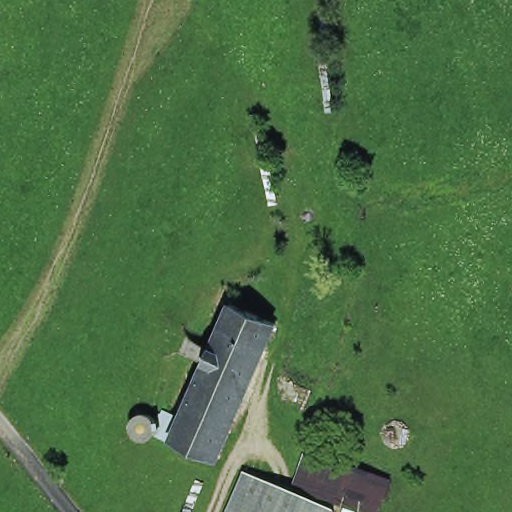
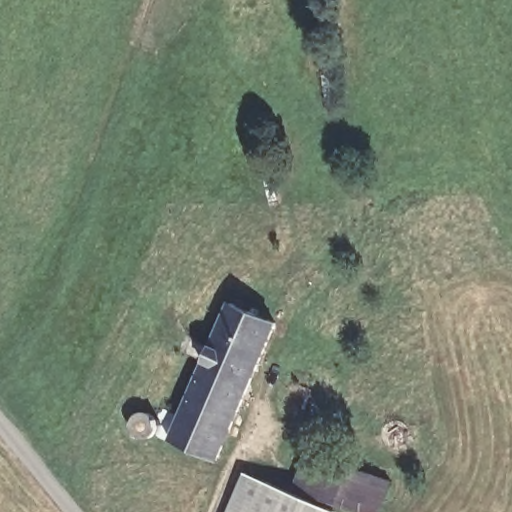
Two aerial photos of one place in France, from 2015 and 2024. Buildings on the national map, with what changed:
unchanged [(227,303),(271,319),(254,364),(210,346),(225,308),(227,303)]
unchanged [(231,424),(193,390),(210,346),(254,364),(231,424)]
unchanged [(193,390),(231,424),(228,431),(224,427),(212,455),(165,436),(187,383),(193,390)]
unchanged [(144,438),(139,439),(134,438),(129,435),(126,431),(125,426),(126,421),(129,416),(134,413),(139,412),(144,414),(149,416),(151,421),(152,426),(151,431),(148,436),(144,438)]
unchanged [(340,502),(336,512),(225,512),(244,465),(340,502)]

